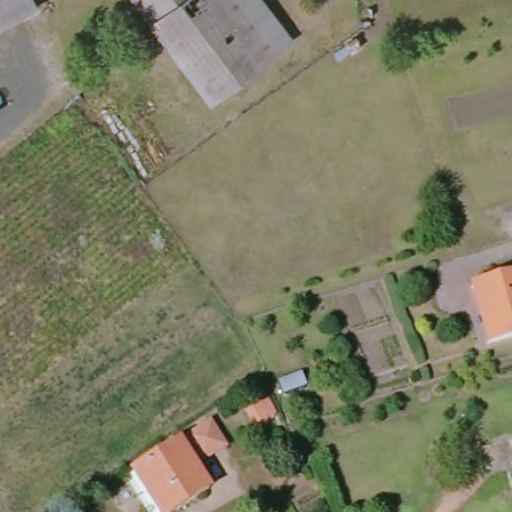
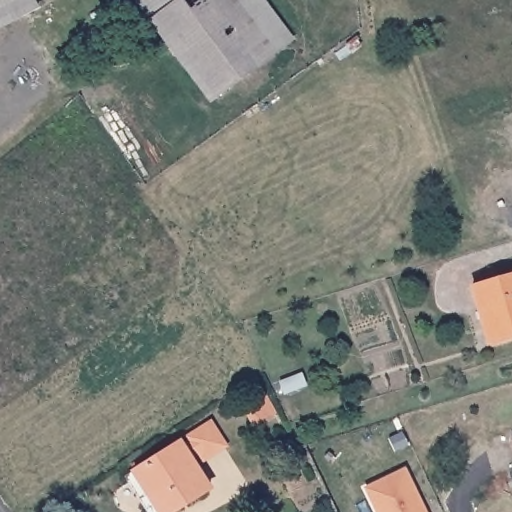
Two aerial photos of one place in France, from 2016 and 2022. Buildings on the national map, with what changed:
unchanged [(0,26),(0,0),(34,0),(37,6),(0,26)]
unchanged [(173,0),(146,20),(132,0),(173,0)]
unchanged [(207,102),(146,20),(173,0),(248,0),(283,46),(207,102)]
unchanged [(512,277),(512,337),(491,344),(485,328),(481,329),(469,291),(512,277)]
unchanged [(175,440),(207,419),(225,448),(191,467),(205,489),(170,512),(153,512),(127,470),(175,440)]
unchanged [(509,443),(512,442),(512,453),(509,443)]
new [(365,488),(406,468),(427,512),(376,512),(365,488)]

